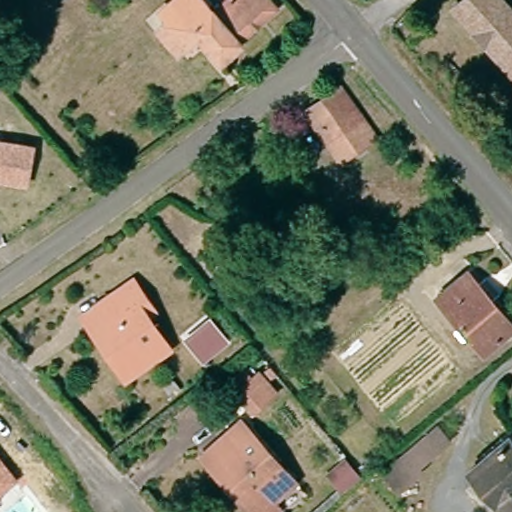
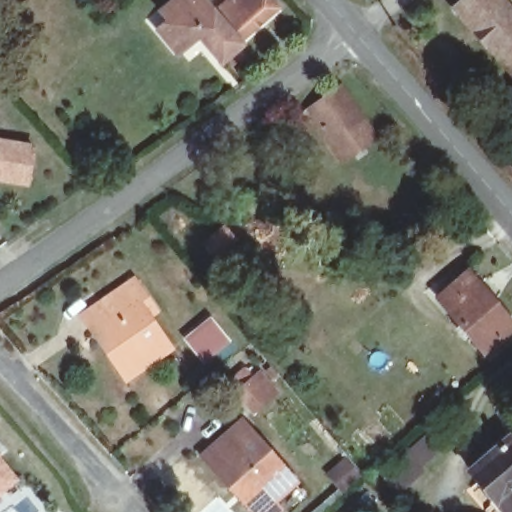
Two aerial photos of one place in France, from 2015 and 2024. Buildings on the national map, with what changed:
unchanged [(182,15),(185,12),(180,7),(189,0),(196,0),(209,15),(234,47),(215,62),(197,40),(177,58),(158,36),(182,15)]
unchanged [(234,47),(209,15),(226,0),(265,0),(275,12),(234,47)]
unchanged [(497,0),(512,17),(512,81),(449,9),(459,0),(497,0)]
unchanged [(342,91),(377,136),(341,165),(305,118),(342,91)]
unchanged [(24,184),(0,179),(0,141),(30,146),(24,184)]
unchanged [(512,328),(480,354),(432,297),(465,275),(512,328)]
unchanged [(101,303),(134,282),(146,300),(155,314),(147,319),(169,350),(125,379),(112,360),(83,316),(101,303)]
unchanged [(201,364),(184,343),(211,321),(229,342),(201,364)]
unchanged [(247,413),(222,385),(240,370),(248,380),(254,375),(270,395),(247,413)]
unchanged [(278,510),(277,512),(251,512),(239,498),(202,455),(241,423),(247,430),(293,483),(271,502),(278,510)]
unchanged [(378,472),(434,423),(448,442),(395,495),(378,472)]
unchanged [(468,478),(507,442),(512,448),(512,512),(501,512),(468,478)]
unchanged [(0,494),(0,459),(16,481),(0,494)]
unchanged [(362,479),(347,492),(332,475),(347,462),(362,479)]

